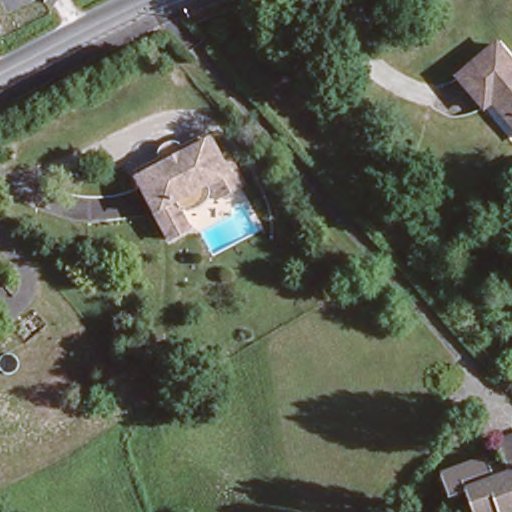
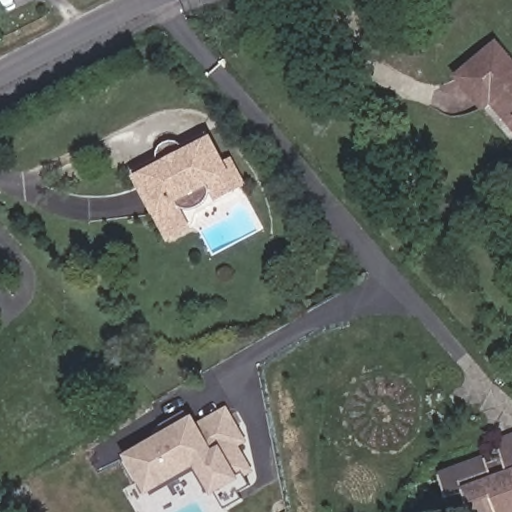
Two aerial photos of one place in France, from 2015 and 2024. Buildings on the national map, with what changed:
unchanged [(489,38),(512,63),(512,135),(454,70),(489,38)]
unchanged [(190,212),(174,212),(186,228),(168,240),(126,179),(146,166),(149,154),(166,145),(172,151),(188,141),(196,136),(217,168),(224,164),(239,188),(218,201),(206,189),(202,205),(190,212)]
new [(237,493),(241,499),(223,510),(211,490),(195,462),(146,490),(141,480),(134,485),(120,462),(164,436),(158,426),(179,414),(184,412),(190,423),(194,429),(224,412),(240,440),(232,445),(246,471),(241,473),(249,486),(237,493)]
unchanged [(488,470),(504,465),(495,435),(512,429),(512,512),(472,512),(464,489),(447,494),(440,475),(485,459),(488,470)]

